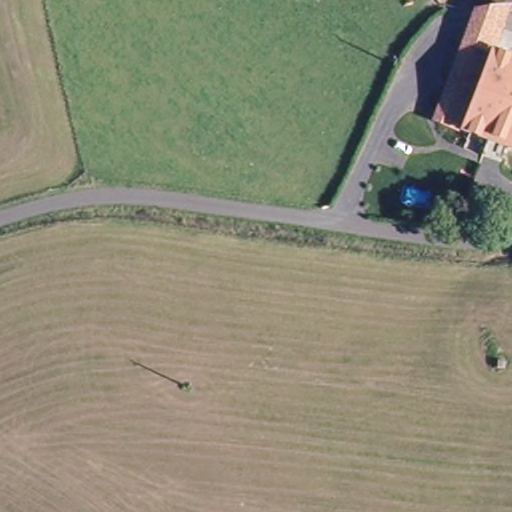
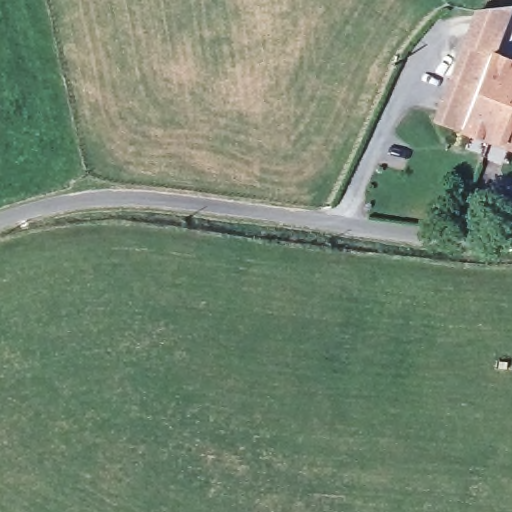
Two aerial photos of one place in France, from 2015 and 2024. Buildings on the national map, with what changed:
unchanged [(443,106),(474,10),(507,5),(488,60),(512,69),(512,153),(461,135),(436,125),(443,106)]

